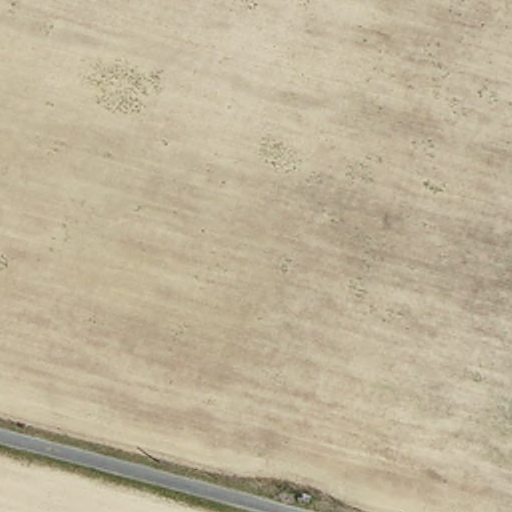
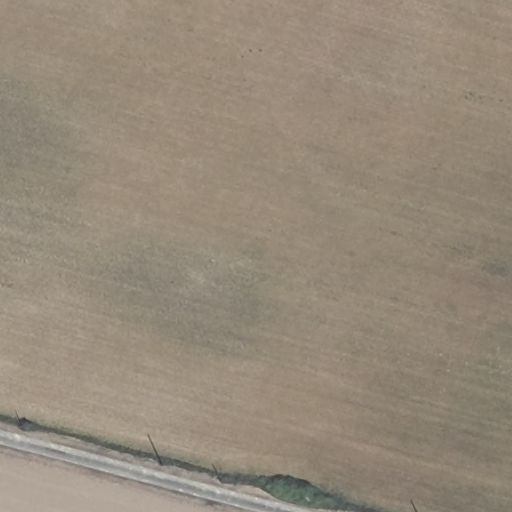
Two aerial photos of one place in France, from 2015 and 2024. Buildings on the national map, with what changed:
[]

